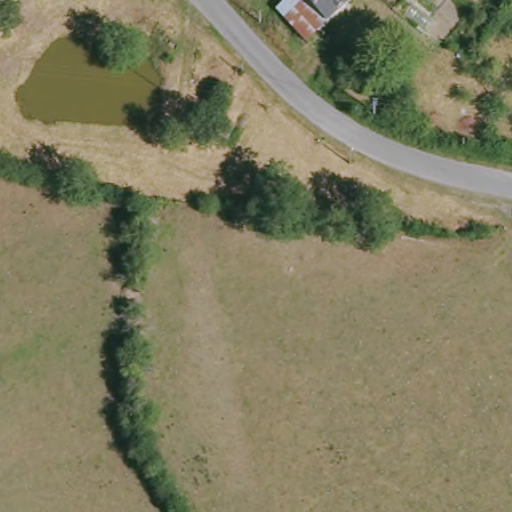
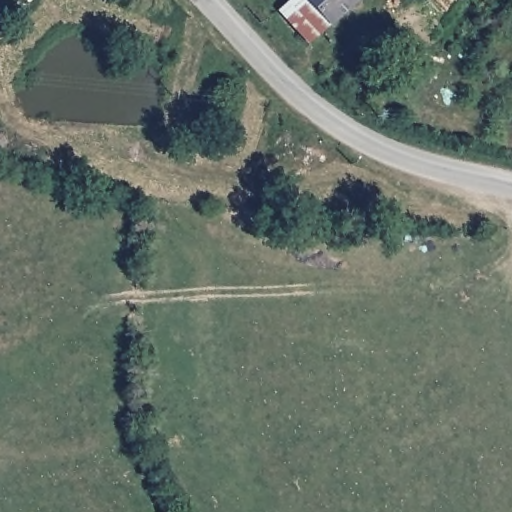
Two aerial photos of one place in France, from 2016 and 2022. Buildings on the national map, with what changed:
unchanged [(322,34),(310,46),(277,12),(290,0),(308,0),(331,25),(322,34)]
unchanged [(308,0),(360,0),(331,25),(308,0)]

